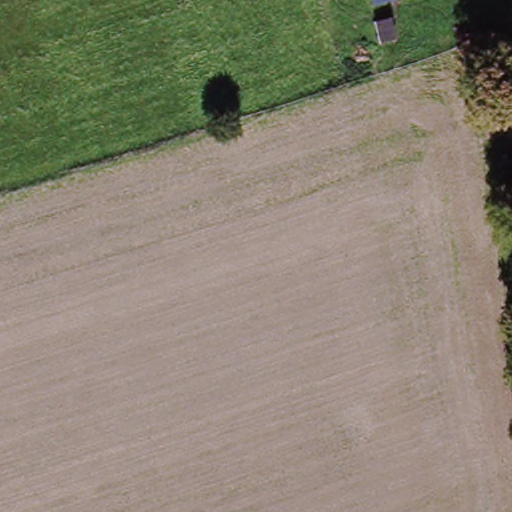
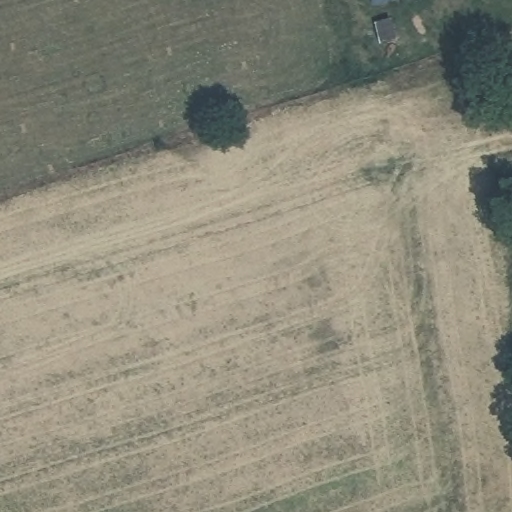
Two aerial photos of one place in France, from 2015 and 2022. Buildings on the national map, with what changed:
unchanged [(376,1),(376,0),(381,0),(376,1)]

